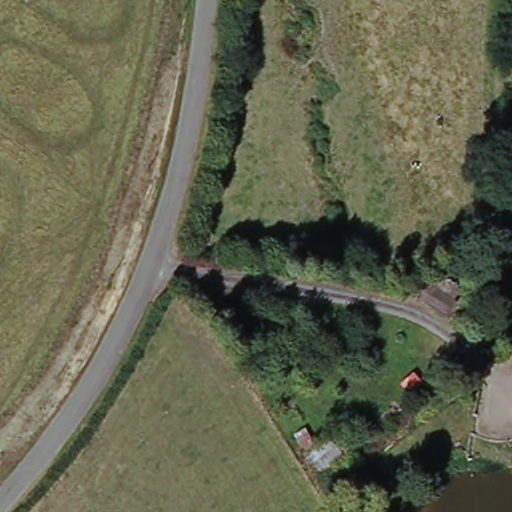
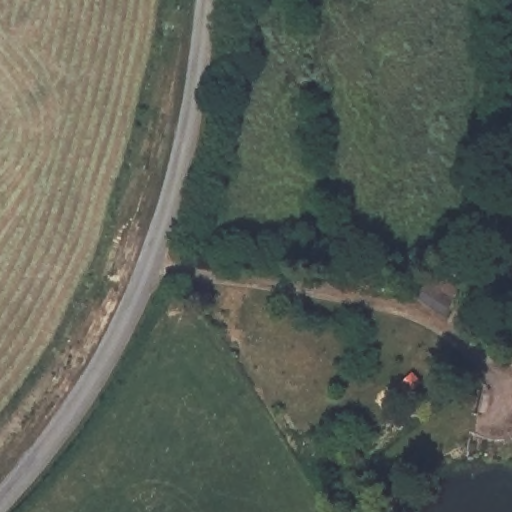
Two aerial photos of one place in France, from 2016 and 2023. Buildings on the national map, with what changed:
[]

